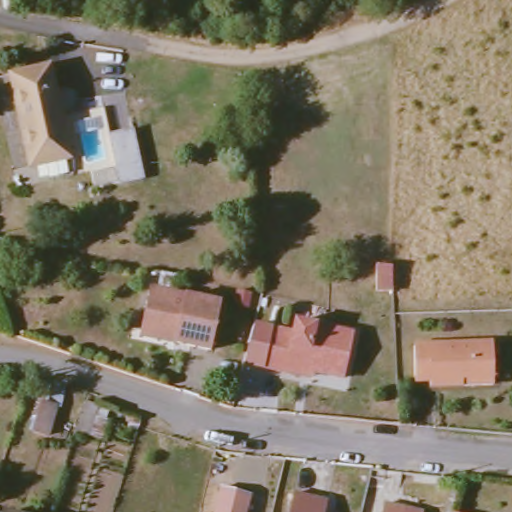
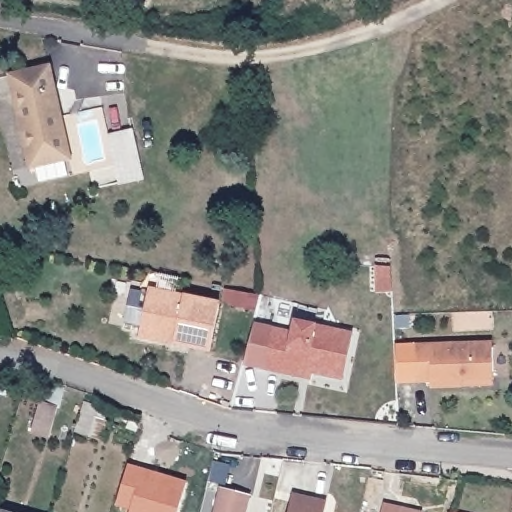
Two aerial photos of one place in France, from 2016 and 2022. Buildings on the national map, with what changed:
unchanged [(63,153),(27,160),(12,91),(18,90),(13,69),(42,63),(46,78),(63,153)]
unchanged [(136,134),(147,184),(123,189),(112,139),(136,134)]
unchanged [(395,294),(378,295),(377,269),(393,269),(395,294)]
unchanged [(149,292),(218,309),(207,355),(171,347),(173,341),(139,333),(149,292)]
unchanged [(250,297),(246,311),(233,307),(237,293),(250,297)]
unchanged [(268,374),(246,369),(257,332),(295,339),(296,328),(351,339),(344,383),(292,373),(290,378),(268,374)]
unchanged [(467,378),(467,383),(435,384),(435,378),(421,378),(403,379),(402,345),(421,345),(497,344),(498,377),(467,378)]
unchanged [(61,401),(51,432),(35,427),(46,396),(61,401)]
unchanged [(105,410),(95,440),(82,437),(92,407),(105,410)]
new [(231,466),(226,486),(210,481),(215,462),(231,466)]
new [(130,465),(188,484),(179,512),(131,512),(132,508),(117,504),(130,465)]
unchanged [(249,497),(245,512),(217,512),(222,490),(249,497)]
unchanged [(293,494),(327,502),(325,512),(289,512),(293,494)]
unchanged [(386,505),(405,510),(405,512),(384,512),(386,505)]

